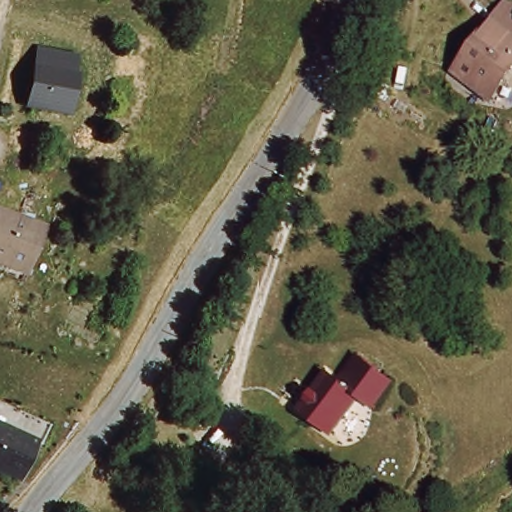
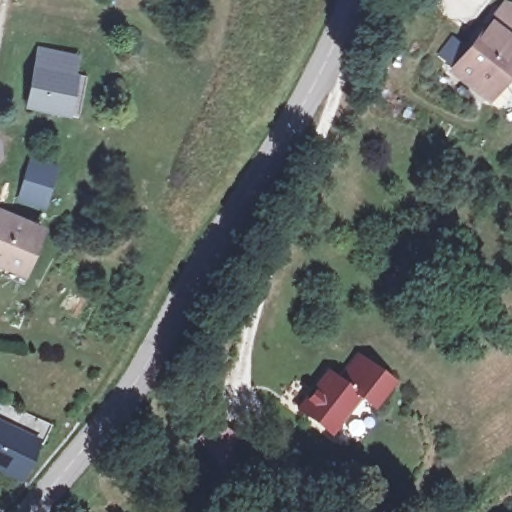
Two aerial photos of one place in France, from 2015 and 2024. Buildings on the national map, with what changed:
unchanged [(481,106),(445,82),(491,13),(512,28),(512,60),(481,106)]
unchanged [(75,58),(62,112),(27,104),(41,50),(75,58)]
new [(59,163),(48,207),(17,198),(30,156),(59,163)]
unchanged [(22,272),(0,263),(0,213),(38,227),(22,272)]
unchanged [(359,358),(391,385),(382,395),(373,408),(359,397),(342,417),(331,432),(298,403),(326,368),(341,380),(356,362),(359,358)]
unchanged [(15,478),(0,471),(0,427),(32,441),(15,478)]
unchanged [(266,476),(247,496),(237,488),(254,467),(266,476)]

